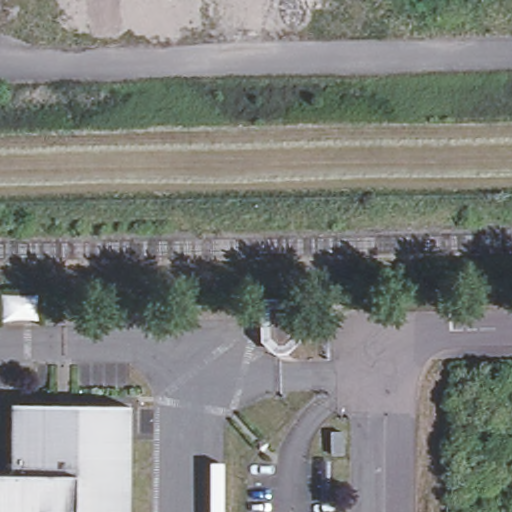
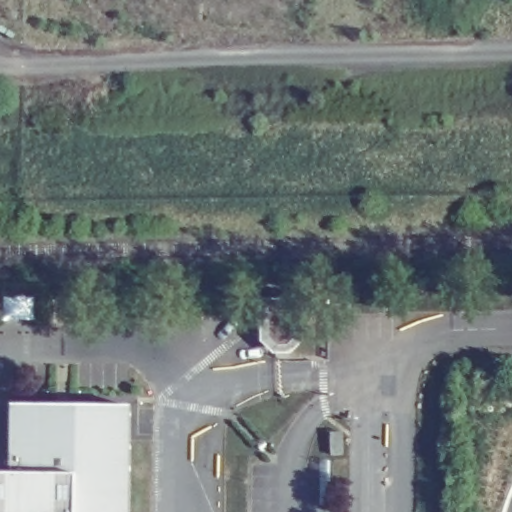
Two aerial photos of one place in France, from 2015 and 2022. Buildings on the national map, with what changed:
unchanged [(300,300),(302,332),(294,340),(281,340),(272,332),(271,301),(300,300)]
unchanged [(7,404),(125,405),(123,506),(123,512),(0,512),(0,473),(5,473),(7,404)]
unchanged [(343,431),(344,454),(332,454),(331,432),(343,431)]

